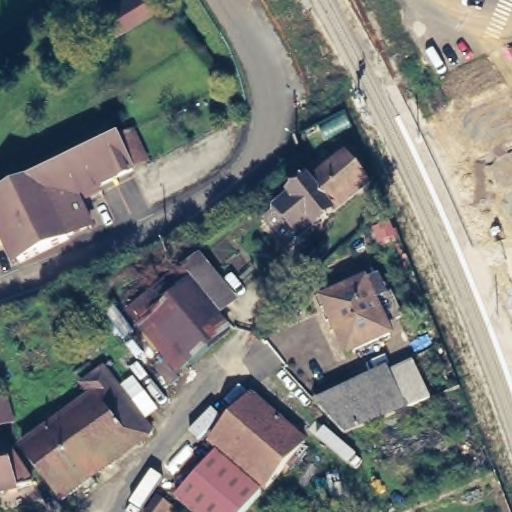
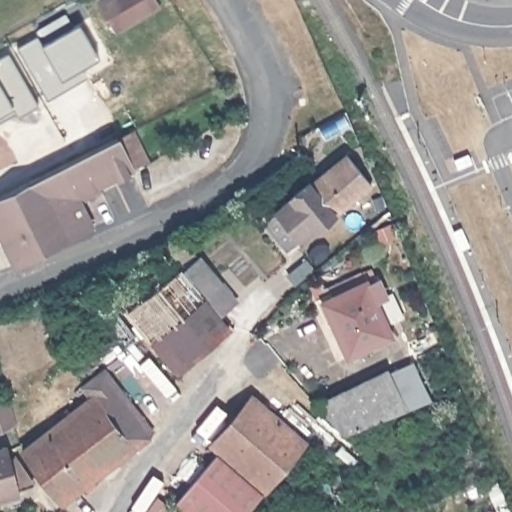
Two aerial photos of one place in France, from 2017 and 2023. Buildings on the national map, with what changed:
unchanged [(162,9),(117,31),(99,0),(159,0),(162,9)]
new [(43,32),(47,39),(78,20),(99,55),(82,65),(85,70),(65,82),(67,86),(47,98),(16,46),(43,32)]
new [(39,104),(19,115),(12,106),(0,113),(0,55),(7,51),(39,104)]
demolished [(512,120),(512,145),(497,151),(480,117),(503,103),(512,120)]
new [(15,110),(0,120),(0,113),(12,106),(15,110)]
unchanged [(14,262),(0,235),(0,193),(112,138),(127,169),(70,199),(85,226),(63,237),(14,262)]
unchanged [(310,177),(345,148),(367,179),(332,206),(310,177)]
unchanged [(316,219),(314,216),(290,234),(272,211),(293,195),(292,192),(310,177),(332,206),(316,219)]
unchanged [(205,292),(207,291),(202,285),(200,287),(184,267),(198,256),(235,297),(220,310),(205,292)]
unchanged [(129,312),(180,270),(230,327),(177,371),(157,346),(129,312)]
unchanged [(360,287),(370,283),(379,301),(368,305),(384,337),(345,356),(320,303),(359,284),(360,287)]
unchanged [(369,375),(370,377),(388,367),(405,408),(345,433),(317,398),(369,375)]
unchanged [(65,496),(26,443),(114,375),(155,428),(65,496)]
unchanged [(269,482),(213,435),(252,388),(308,435),(269,482)]
unchanged [(0,397),(4,395),(10,419),(0,425),(0,397)]
unchanged [(4,449),(6,459),(14,457),(30,484),(0,493),(0,444),(2,443),(4,449)]
unchanged [(263,488),(243,512),(199,512),(178,493),(216,449),(263,488)]
unchanged [(178,505),(175,508),(170,505),(165,512),(152,512),(149,510),(162,491),(173,500),(178,505)]

